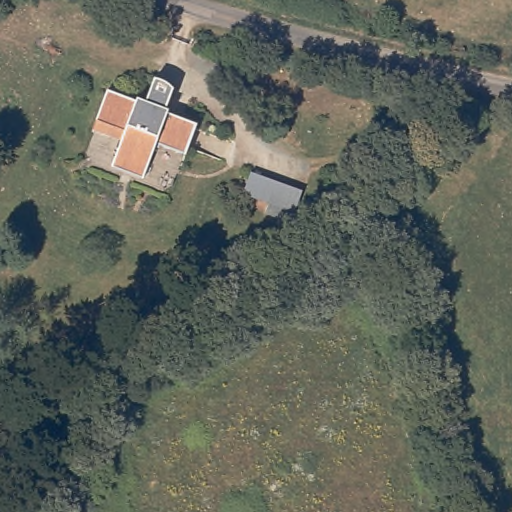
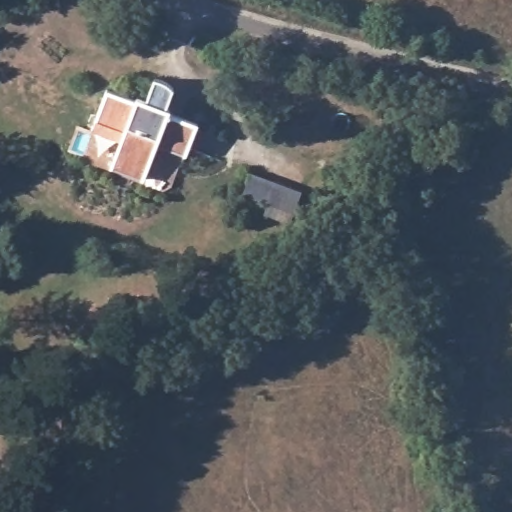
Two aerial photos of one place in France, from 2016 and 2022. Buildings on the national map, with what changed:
unchanged [(108,92),(138,103),(143,99),(150,101),(160,75),(177,86),(170,106),(175,109),(173,115),(200,124),(189,147),(162,139),(148,175),(116,164),(130,127),(98,116),(108,92)]

